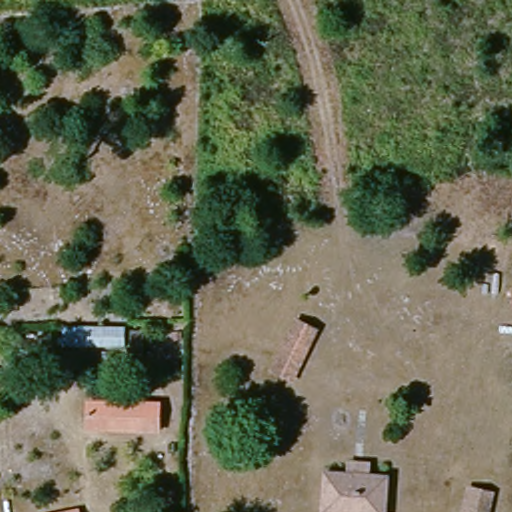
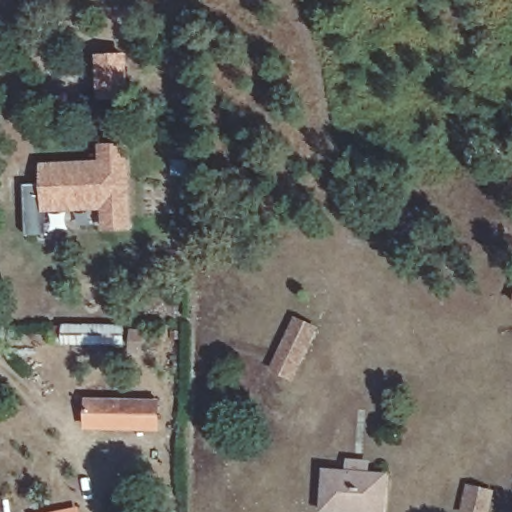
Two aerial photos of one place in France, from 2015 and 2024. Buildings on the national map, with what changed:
new [(130,101),(99,102),(96,55),(128,54),(130,101)]
new [(47,235),(26,234),(25,185),(41,185),(41,163),(100,161),(99,145),(129,145),(133,230),(103,231),(101,210),(45,212),(47,235)]
unchanged [(310,323),(305,381),(284,379),(286,321),(310,323)]
unchanged [(129,322),(129,345),(64,345),(66,322),(129,322)]
unchanged [(154,398),(153,426),(97,426),(99,399),(154,398)]
unchanged [(328,465),(391,468),(386,512),(325,512),(328,465)]

